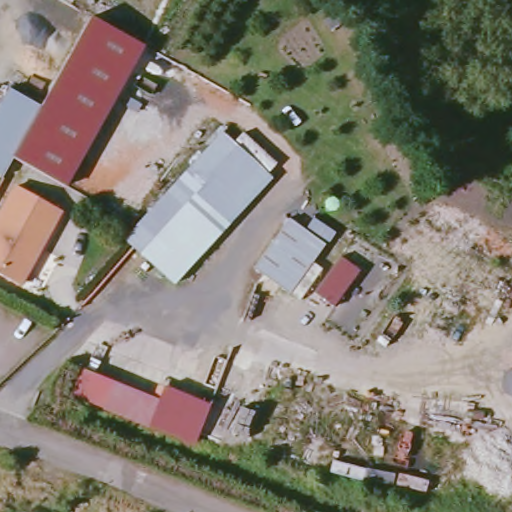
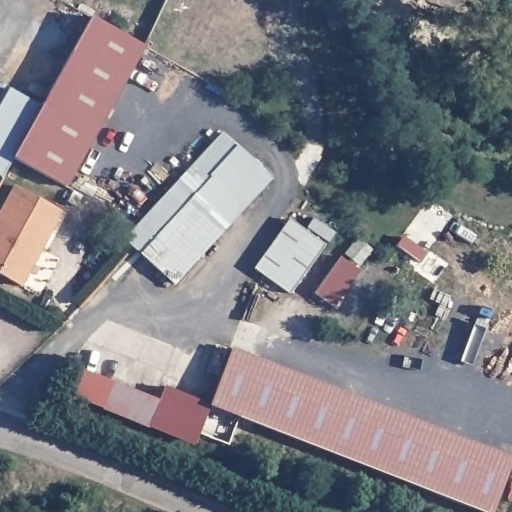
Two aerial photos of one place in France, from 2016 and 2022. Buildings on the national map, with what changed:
unchanged [(43,105),(94,16),(145,46),(67,186),(15,158),(43,105)]
unchanged [(0,176),(0,108),(13,88),(43,105),(4,178),(0,176)]
unchanged [(220,131),(268,177),(171,283),(121,238),(220,131)]
unchanged [(19,286),(0,275),(0,217),(15,187),(58,208),(19,286)]
unchanged [(288,218),(325,248),(287,298),(253,273),(288,218)]
new [(340,257),(341,258),(357,238),(372,250),(357,268),(359,269),(335,306),(315,293),(340,257)]
new [(493,512),(479,512),(210,404),(233,349),(512,458),(512,459),(493,512)]
unchanged [(148,434),(67,397),(79,368),(158,401),(148,434)]
unchanged [(158,401),(164,386),(210,404),(196,445),(150,427),(158,401)]

